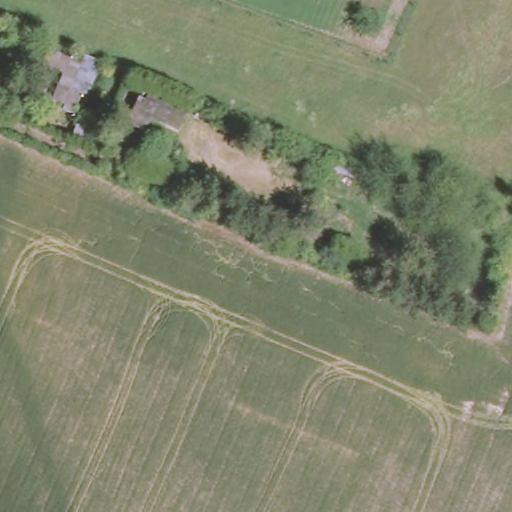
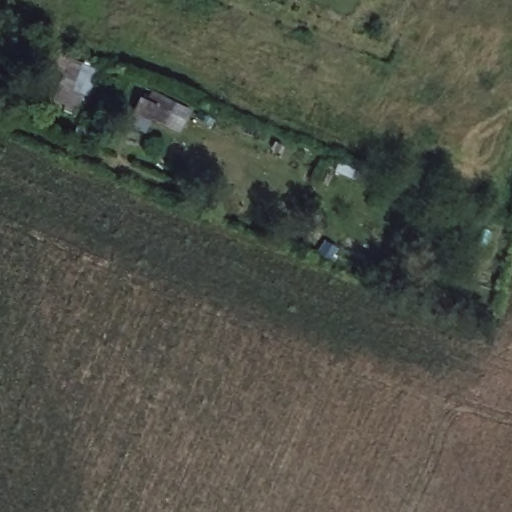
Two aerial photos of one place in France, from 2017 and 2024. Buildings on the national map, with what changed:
unchanged [(68,56),(83,64),(86,57),(102,64),(88,96),(59,83),(68,56)]
unchanged [(145,86),(190,106),(181,130),(150,118),(145,131),(127,121),(145,86)]

